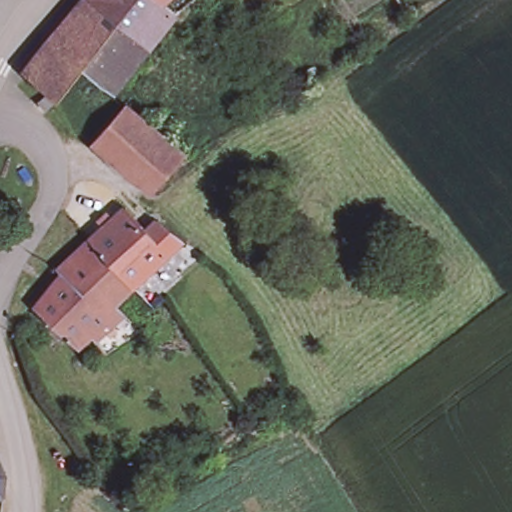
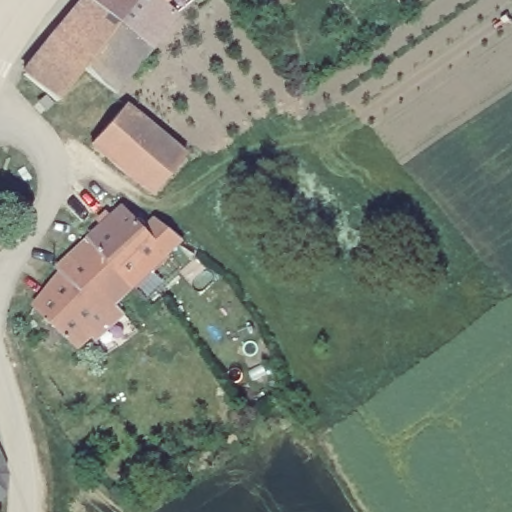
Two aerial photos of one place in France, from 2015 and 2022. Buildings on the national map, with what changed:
unchanged [(151,43),(116,91),(85,65),(72,82),(57,100),(25,72),(82,0),(97,0),(151,43)]
unchanged [(167,3),(176,10),(151,43),(97,0),(164,0),(167,3)]
unchanged [(167,3),(164,0),(171,0),(167,3)]
unchanged [(186,158),(156,195),(123,174),(93,144),(125,108),(186,158)]
unchanged [(105,323),(93,334),(74,351),(30,310),(57,277),(53,272),(79,248),(86,243),(121,210),(145,237),(155,228),(172,246),(162,256),(142,275),(129,288),(128,289),(121,296),(110,307),(127,325),(117,335),(105,323)]
unchanged [(3,484),(0,487),(0,453),(6,468),(3,484)]

